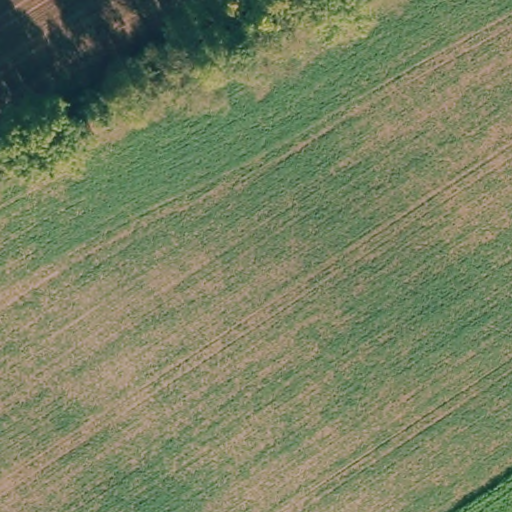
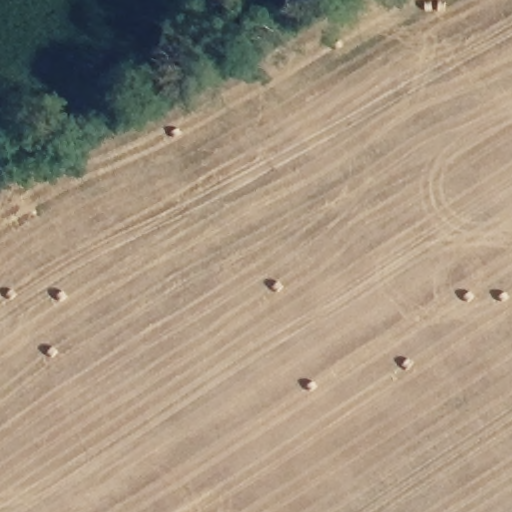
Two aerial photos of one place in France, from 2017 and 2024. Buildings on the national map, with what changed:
[]

